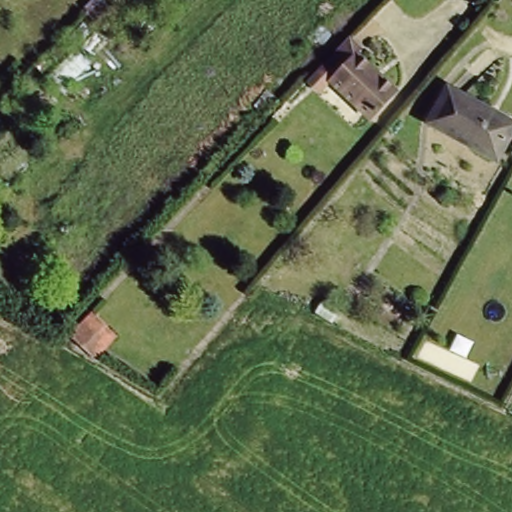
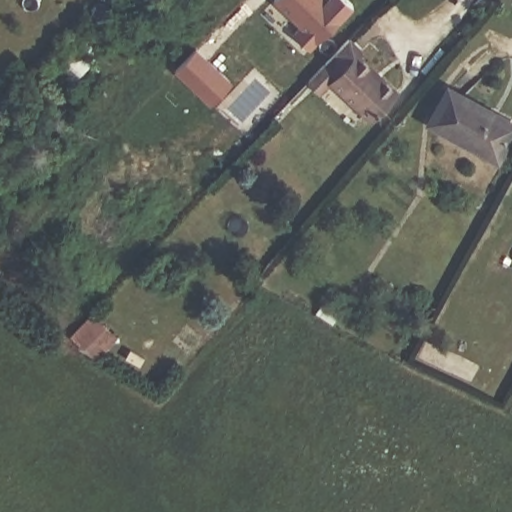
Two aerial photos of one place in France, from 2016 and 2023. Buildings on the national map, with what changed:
new [(313,50),(296,36),(304,27),(276,2),(277,0),(351,0),(355,4),(313,50)]
unchanged [(348,39),(398,92),(370,121),(331,82),(336,77),(324,65),(348,39)]
unchanged [(43,77),(78,47),(92,61),(59,93),(43,77)]
new [(212,107),(176,71),(199,48),(234,81),(212,107)]
unchanged [(443,80),(510,116),(492,149),(425,113),(443,80)]

